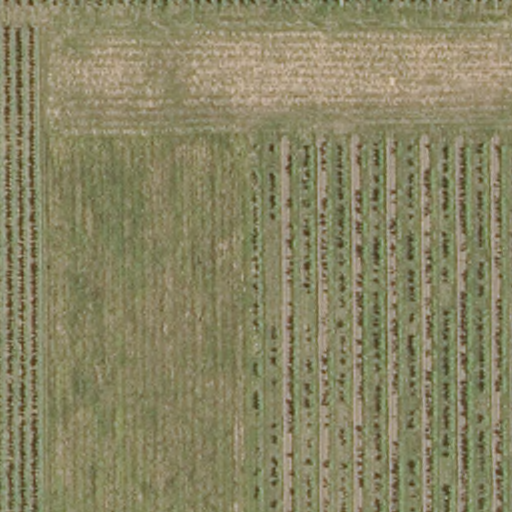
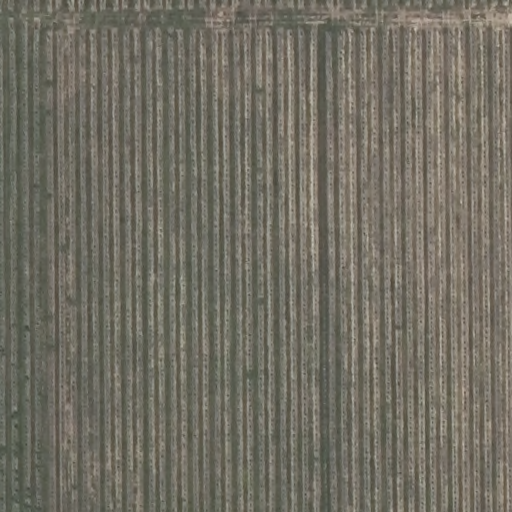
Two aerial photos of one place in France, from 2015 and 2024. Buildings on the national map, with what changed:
[]

